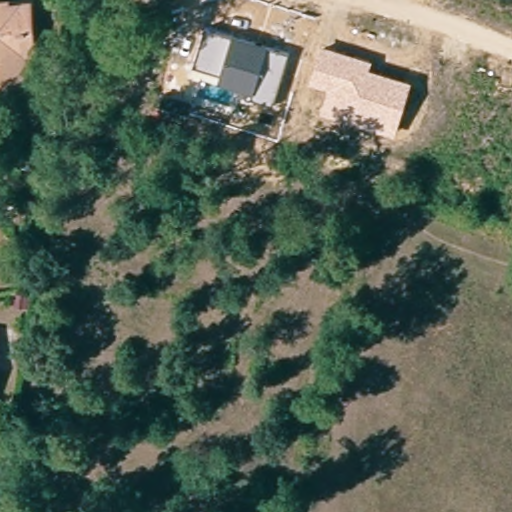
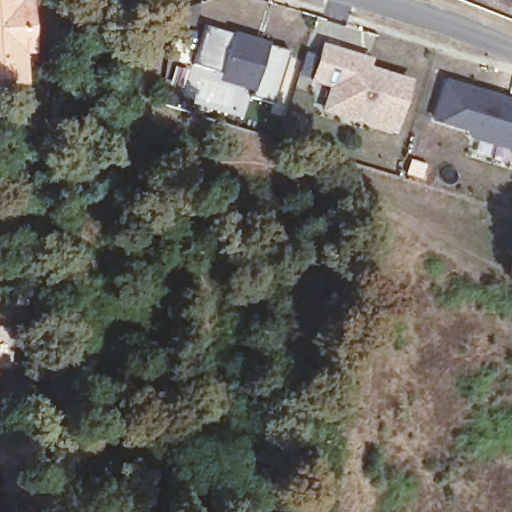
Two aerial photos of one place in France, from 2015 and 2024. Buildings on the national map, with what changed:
unchanged [(4,0),(34,0),(37,21),(25,23),(31,69),(0,75),(0,4),(4,3),(4,0)]
unchanged [(274,104),(250,98),(251,91),(218,82),(220,72),(192,64),(203,25),(289,50),(274,104)]
unchanged [(320,110),(328,86),(309,80),(322,42),(372,57),(371,64),(412,78),(395,134),(320,110)]
new [(490,92),(512,99),(512,140),(511,139),(509,145),(465,131),(466,126),(428,114),(439,76),(490,92)]

